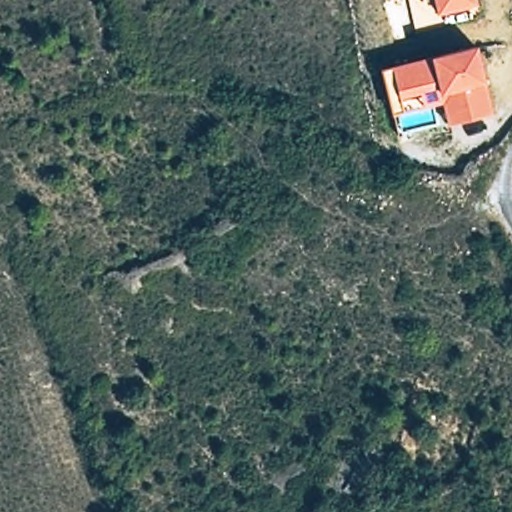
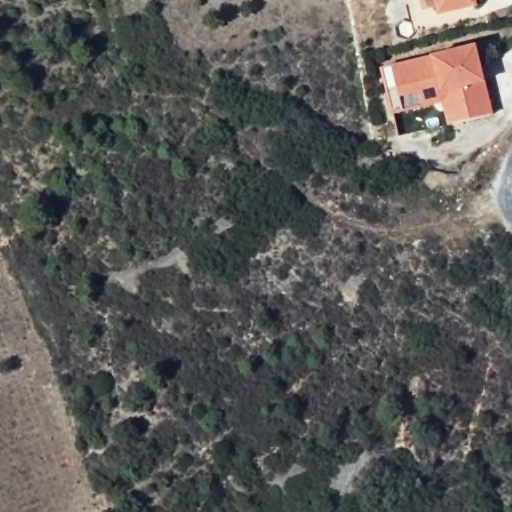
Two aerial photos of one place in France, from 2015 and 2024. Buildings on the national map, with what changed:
unchanged [(470,10),(432,19),(428,0),(468,0),(470,10)]
unchanged [(378,74),(473,53),(487,121),(445,129),(437,110),(387,120),(378,74)]

